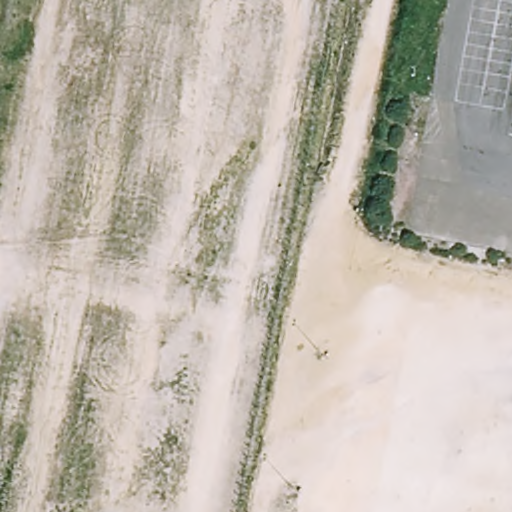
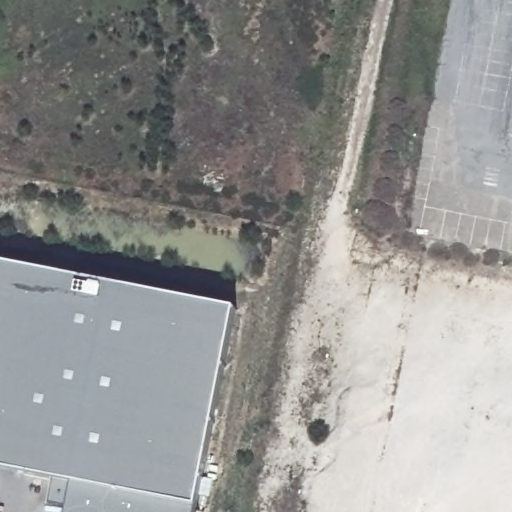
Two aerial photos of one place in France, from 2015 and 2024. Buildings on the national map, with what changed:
new [(196,505),(71,481),(0,467),(0,261),(235,307),(196,505)]
new [(65,512),(71,481),(196,505),(195,512),(65,512)]

